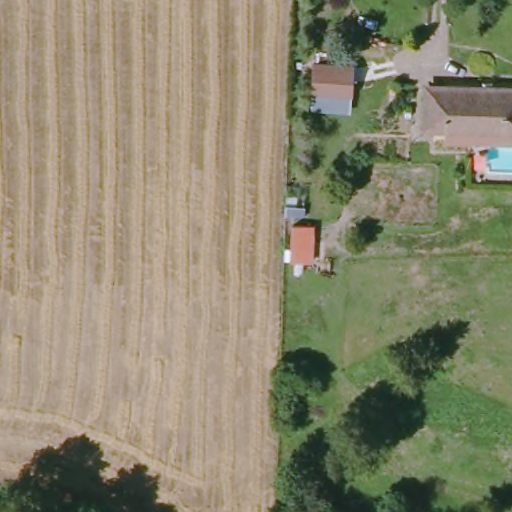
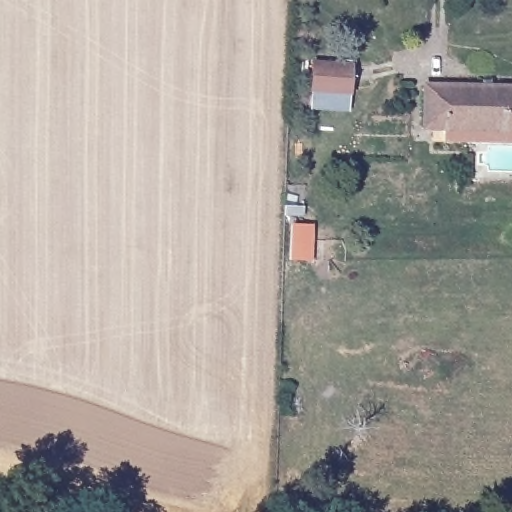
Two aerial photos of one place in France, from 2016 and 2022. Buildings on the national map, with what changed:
unchanged [(309,55),(347,55),(347,83),(347,98),(307,97),(308,82),(309,55)]
unchanged [(440,128),(419,128),(421,86),(443,87),(442,82),(512,85),(512,131),(440,128)]
unchanged [(440,140),(440,128),(512,131),(512,142),(440,140)]
unchanged [(303,221),(303,257),(285,257),(286,221),(303,221)]

